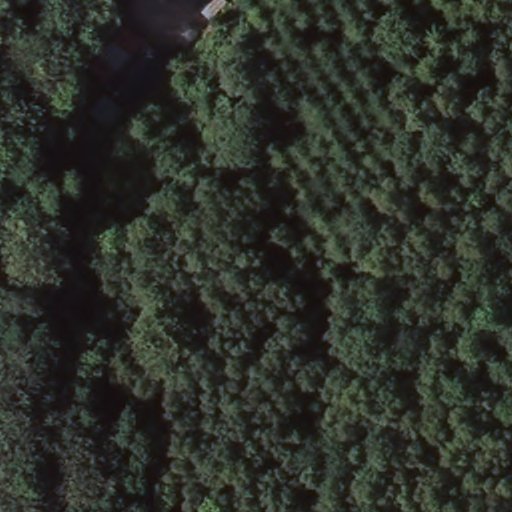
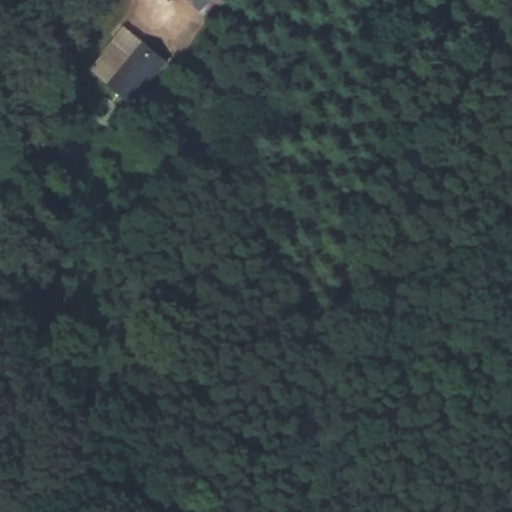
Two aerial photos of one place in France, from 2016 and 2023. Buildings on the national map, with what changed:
unchanged [(226,0),(227,2),(211,20),(190,0),(226,0)]
unchanged [(109,83),(88,66),(123,24),(145,40),(168,62),(132,103),(109,83)]

